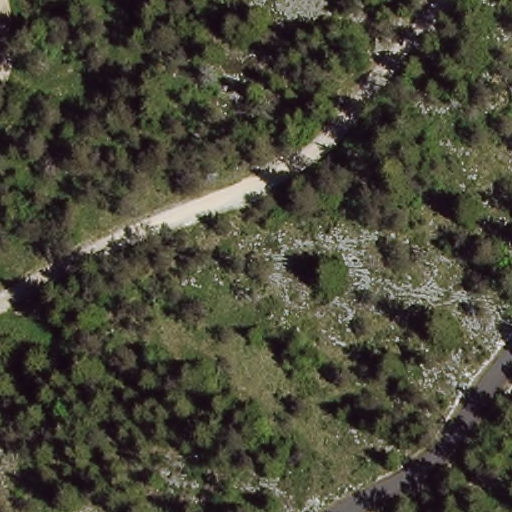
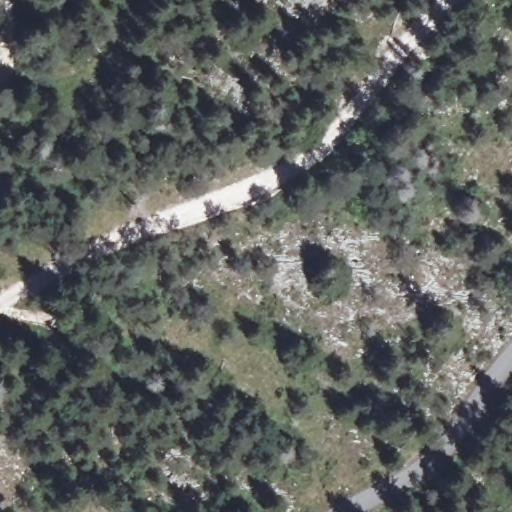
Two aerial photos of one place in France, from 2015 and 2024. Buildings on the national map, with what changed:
[]

